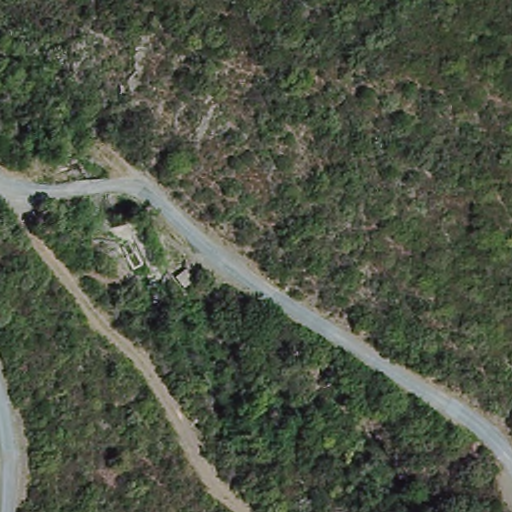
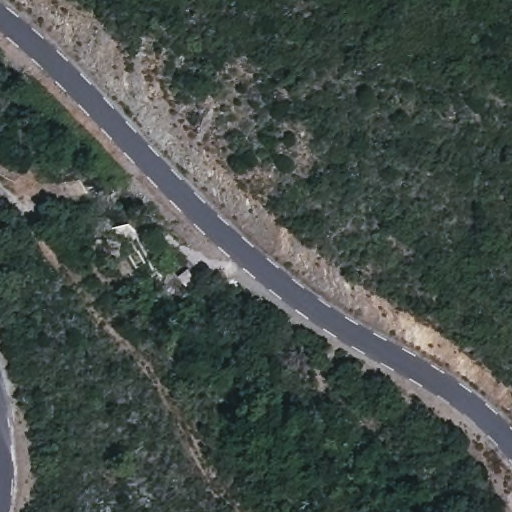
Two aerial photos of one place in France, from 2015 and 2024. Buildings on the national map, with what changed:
unchanged [(177,275),(186,270),(195,283),(185,287),(177,275)]

